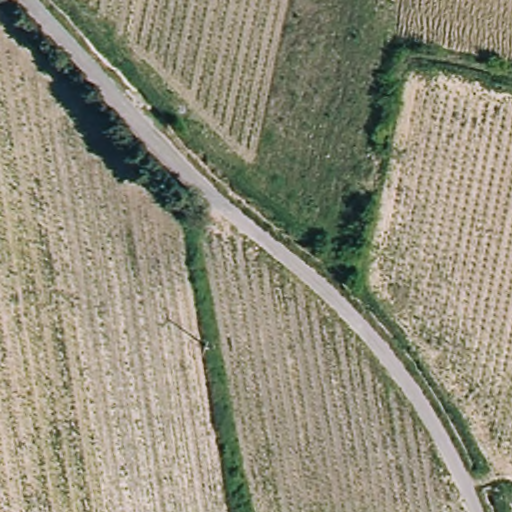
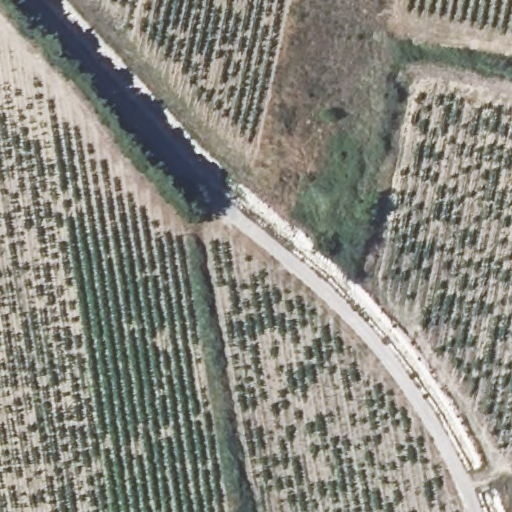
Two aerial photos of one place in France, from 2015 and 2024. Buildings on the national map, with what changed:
[]

